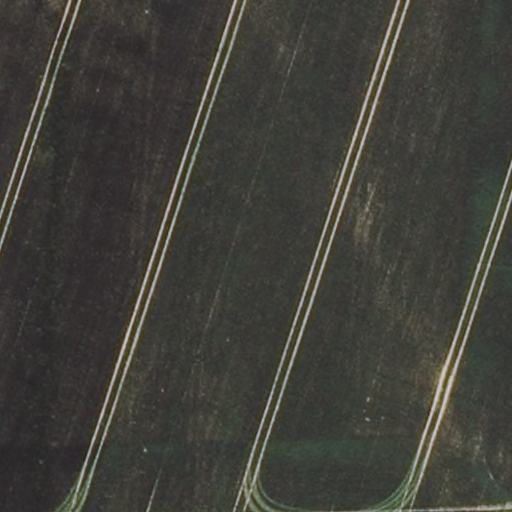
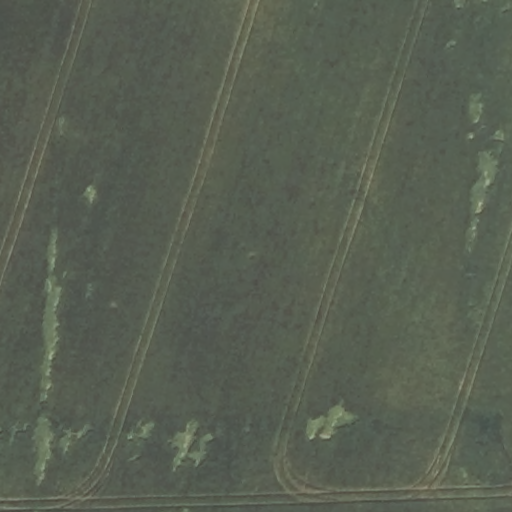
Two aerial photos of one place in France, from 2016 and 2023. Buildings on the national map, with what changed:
[]

